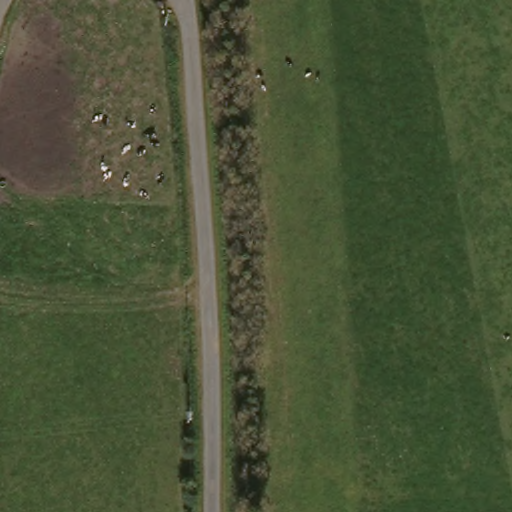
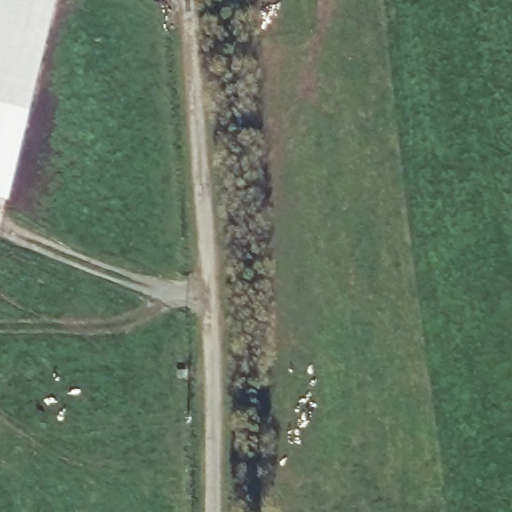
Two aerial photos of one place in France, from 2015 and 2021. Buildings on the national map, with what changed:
new [(0,105),(0,0),(56,0),(29,112),(0,105)]

